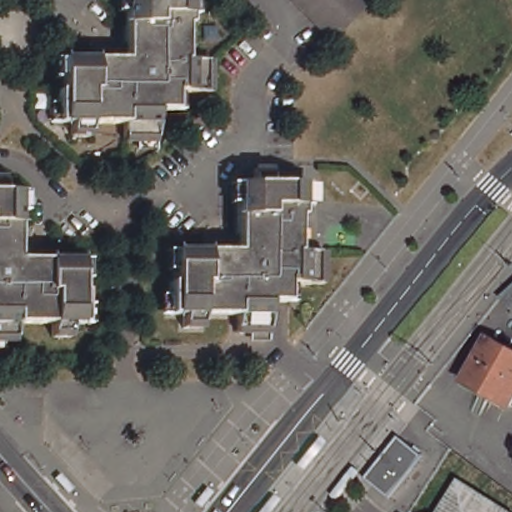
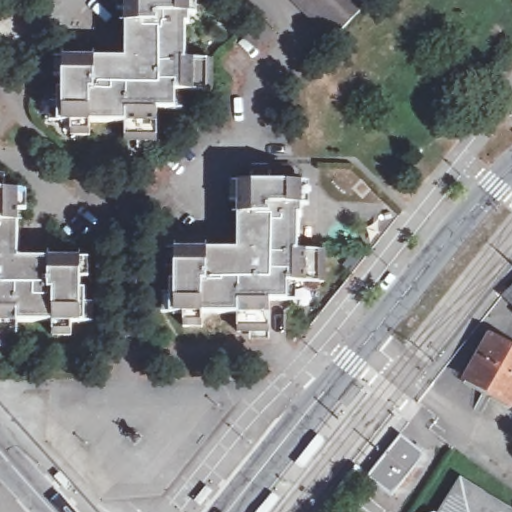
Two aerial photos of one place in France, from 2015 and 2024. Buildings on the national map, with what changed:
unchanged [(55,89),(60,90),(60,57),(123,58),(123,0),(187,0),(187,25),(184,25),(184,59),(209,60),(209,94),(175,92),(173,110),(157,110),(156,142),(123,141),(123,124),(87,122),(87,137),(67,135),(68,122),(55,122),(55,89)]
unchanged [(370,0),(367,4),(332,39),(293,0),(370,0)]
unchanged [(162,277),(166,278),(167,246),(230,247),(232,179),(245,179),(245,166),(265,165),(265,179),(295,180),(295,212),(292,212),(292,247),(317,248),(318,281),(282,280),(282,298),(263,297),(263,329),(230,328),(230,311),(195,311),(195,324),(176,323),(176,310),(162,310),(162,277)]
unchanged [(2,173),(2,186),(17,187),(17,255),(79,256),(78,286),(83,287),(82,318),(70,319),(68,332),(51,332),(50,318),(16,319),(15,335),(0,335),(0,173),(2,173)]
unchanged [(512,290),(512,305),(505,297),(512,290)]
unchanged [(487,342),(512,355),(512,398),(507,406),(464,383),(487,342)]
unchanged [(426,454),(392,497),(367,477),(401,435),(426,454)]
unchanged [(512,512),(441,512),(463,477),(512,508),(512,512)]
unchanged [(440,512),(427,512),(434,509),(440,512)]

